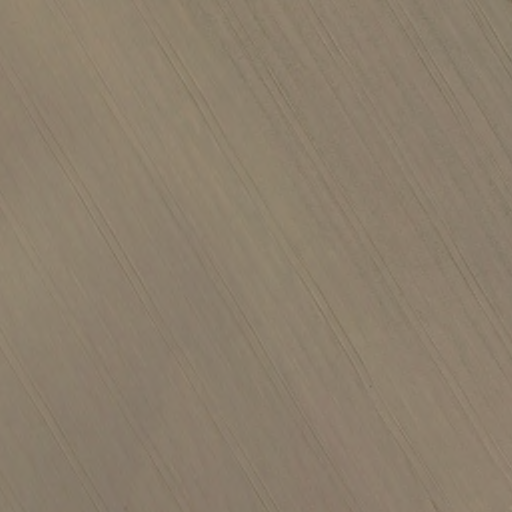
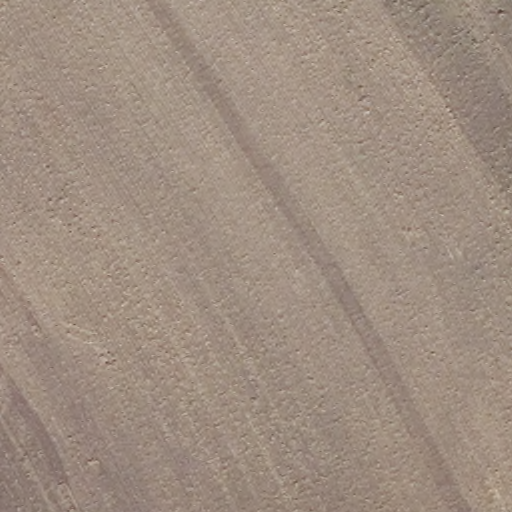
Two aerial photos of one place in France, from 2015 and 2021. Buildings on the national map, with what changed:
unchanged [(512,13),(510,11),(512,10),(512,13)]

